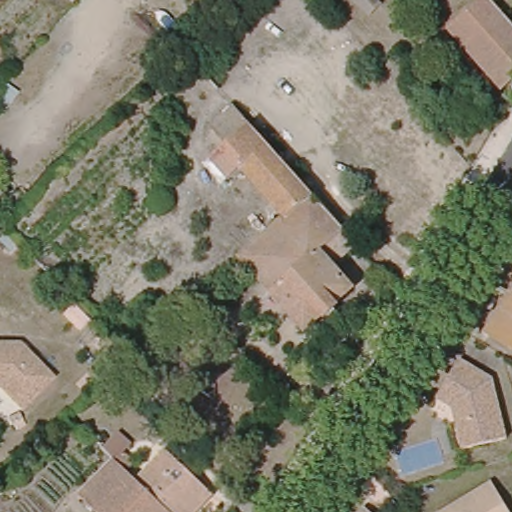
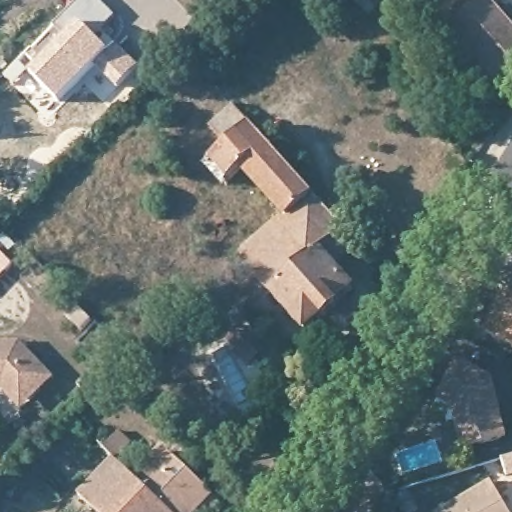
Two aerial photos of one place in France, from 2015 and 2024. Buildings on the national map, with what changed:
new [(117,89),(95,69),(60,106),(31,81),(26,86),(25,84),(18,90),(3,76),(61,12),(75,0),(98,0),(115,16),(103,31),(116,44),(139,66),(117,89)]
unchanged [(504,93),(449,30),(483,0),(490,0),(512,25),(512,85),(504,93)]
unchanged [(226,188),(208,167),(227,150),(212,133),(239,109),(253,125),(272,147),(243,173),(226,188)]
unchanged [(243,173),(272,147),(316,198),(286,223),(243,173)]
unchanged [(314,260),(284,226),(286,223),(316,198),(346,232),(314,260)]
unchanged [(314,260),(346,232),(360,247),(335,270),(354,292),(306,337),(240,263),(284,226),(314,260)]
new [(0,276),(0,250),(13,263),(0,276)]
unchanged [(512,287),(512,292),(510,290),(512,287)]
unchanged [(487,326),(510,290),(512,292),(512,343),(487,326)]
unchanged [(55,386),(18,415),(0,392),(0,348),(26,350),(55,386)]
unchanged [(491,380),(510,436),(469,448),(457,410),(439,399),(462,363),(491,380)]
unchanged [(213,488),(190,512),(179,512),(141,476),(171,446),(213,488)]
unchanged [(103,512),(80,490),(116,452),(141,476),(179,512),(103,512)]
unchanged [(6,485),(26,469),(36,479),(16,498),(6,485)]
unchanged [(502,512),(437,512),(490,486),(502,512)]

